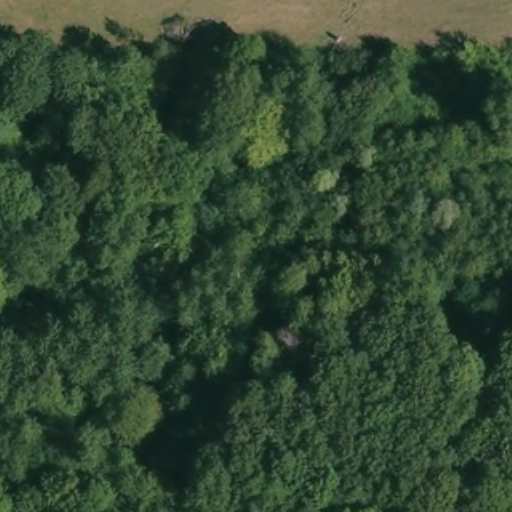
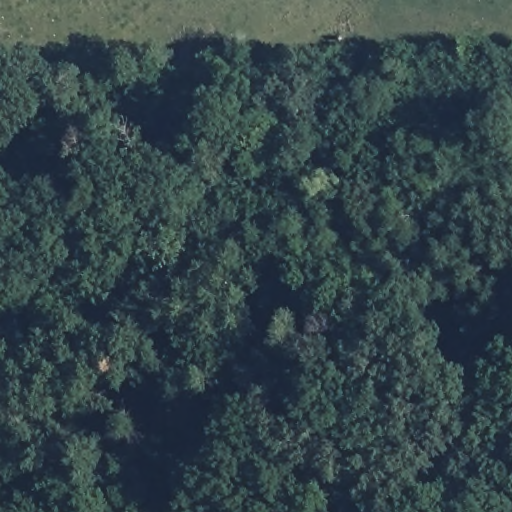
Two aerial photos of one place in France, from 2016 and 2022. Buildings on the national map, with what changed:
unchanged [(227,343),(197,347),(194,327),(224,324),(227,343)]

